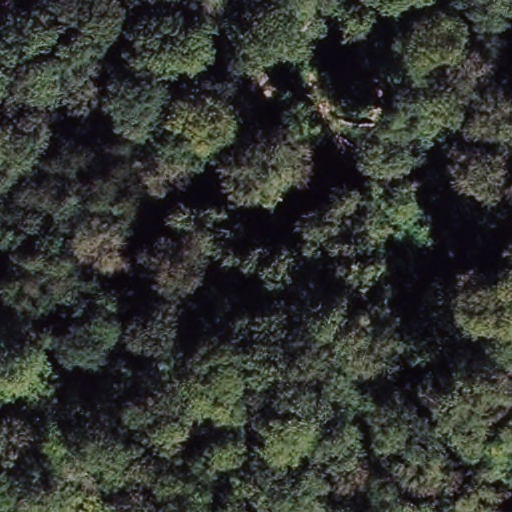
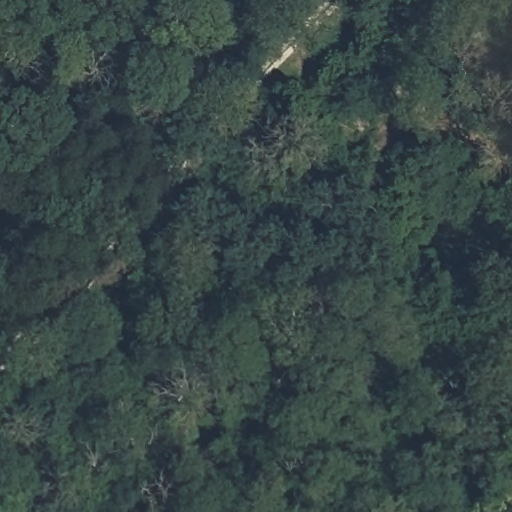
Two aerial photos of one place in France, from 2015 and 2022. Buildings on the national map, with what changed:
[]

